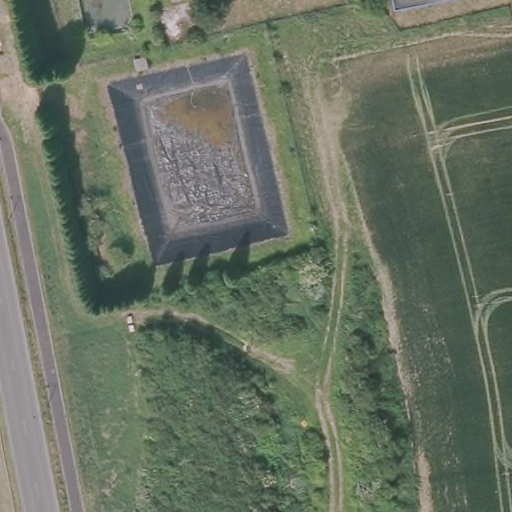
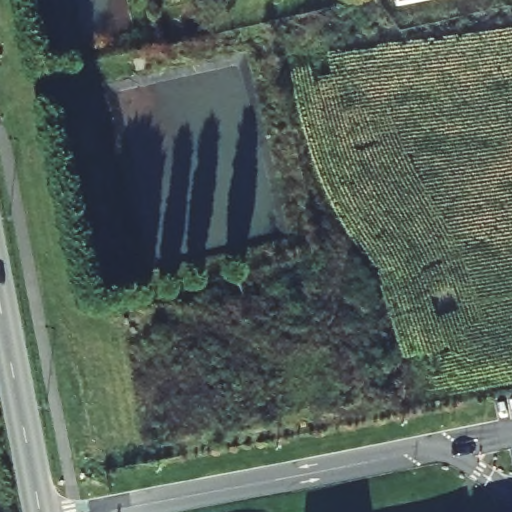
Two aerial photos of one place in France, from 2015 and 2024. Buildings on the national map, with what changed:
unchanged [(391,0),(439,0),(393,9),(391,0)]

